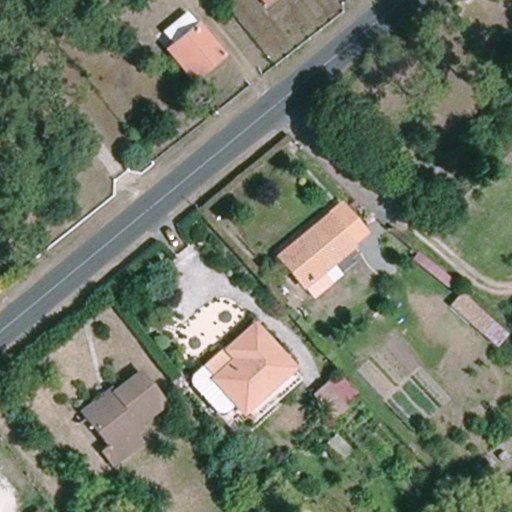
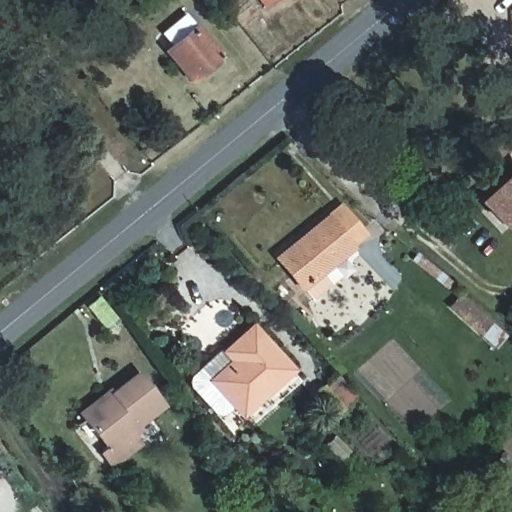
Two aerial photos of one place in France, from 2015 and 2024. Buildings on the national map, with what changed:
unchanged [(195,26),(221,56),(193,80),(167,49),(195,26)]
new [(512,173),(512,221),(502,228),(478,202),(512,173)]
unchanged [(278,258),(341,206),(363,233),(349,245),(352,248),(303,289),(278,258)]
unchanged [(459,294),(490,322),(479,334),(449,306),(459,294)]
unchanged [(240,408),(229,417),(196,380),(229,351),(257,326),(297,370),(246,415),(240,408)]
unchanged [(163,406),(130,431),(141,445),(112,467),(101,453),(108,448),(85,418),(81,413),(110,390),(113,393),(138,373),(163,406)]
unchanged [(327,386),(348,410),(336,420),(316,396),(327,386)]

